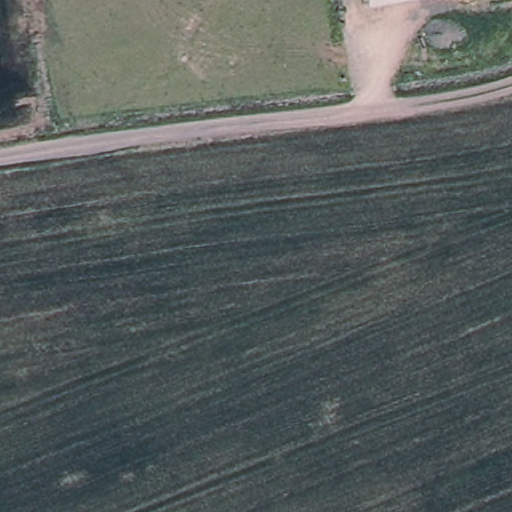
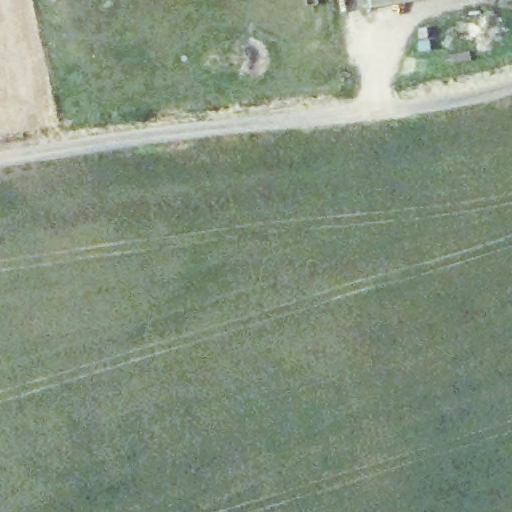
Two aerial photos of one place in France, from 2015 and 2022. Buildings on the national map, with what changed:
unchanged [(370,0),(431,0),(371,9),(370,0)]

